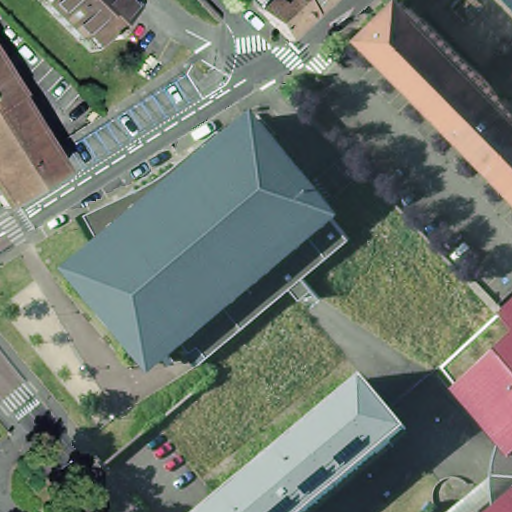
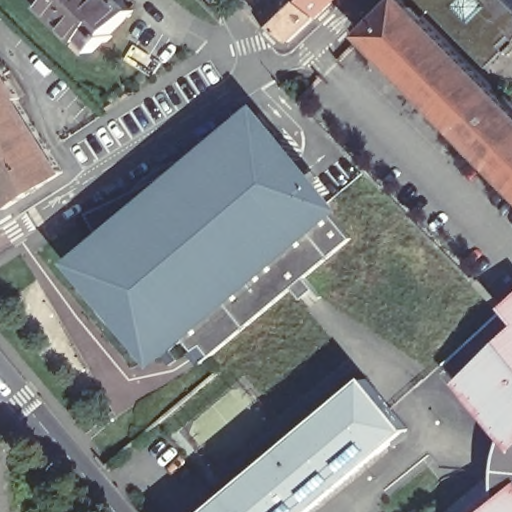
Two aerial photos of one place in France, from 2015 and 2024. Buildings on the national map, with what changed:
unchanged [(121,0),(133,12),(93,53),(39,0),(121,0)]
unchanged [(242,0),(256,0),(247,9),(240,2),(242,0)]
unchanged [(285,47),(277,39),(255,16),(271,0),(289,0),(310,23),(292,40),(285,47)]
unchanged [(289,0),(334,0),(310,23),(289,0)]
unchanged [(512,106),(512,184),(363,34),(396,0),(408,0),(422,15),(512,106)]
unchanged [(484,66),(428,9),(422,15),(408,0),(508,0),(512,4),(512,39),(484,66)]
unchanged [(7,105),(53,177),(0,210),(0,86),(11,104),(7,105)]
unchanged [(177,341),(156,358),(139,336),(130,345),(117,335),(106,324),(92,300),(100,292),(83,271),(105,252),(85,222),(159,186),(220,136),(230,149),(255,129),(327,217),(177,341)]
unchanged [(352,245),(304,284),(312,293),(300,305),(292,296),(202,371),(177,341),(327,217),(352,245)]
unchanged [(512,451),(502,438),(442,366),(502,312),(504,309),(512,301),(512,450),(512,451)]
unchanged [(416,432),(321,512),(203,512),(368,372),(416,432)]
unchanged [(496,506),(494,496),(494,491),(493,488),(494,473),(497,452),(502,438),(512,451),(512,450),(512,512),(489,512),(496,506)]

